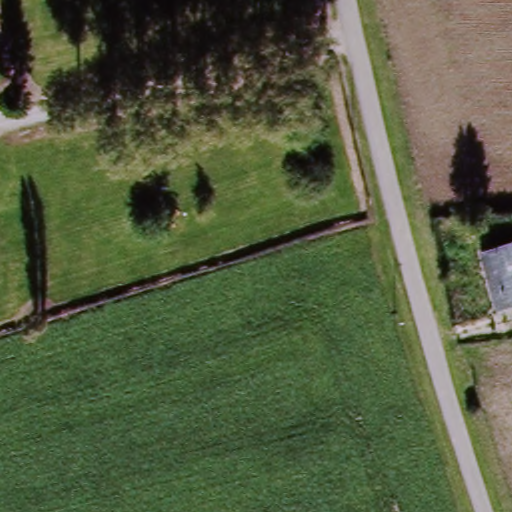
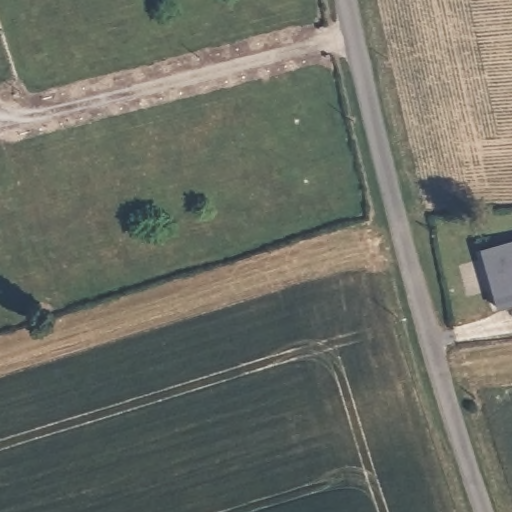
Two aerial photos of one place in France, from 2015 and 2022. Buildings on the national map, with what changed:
unchanged [(479,251),(512,242),(512,312),(496,316),(479,251)]

